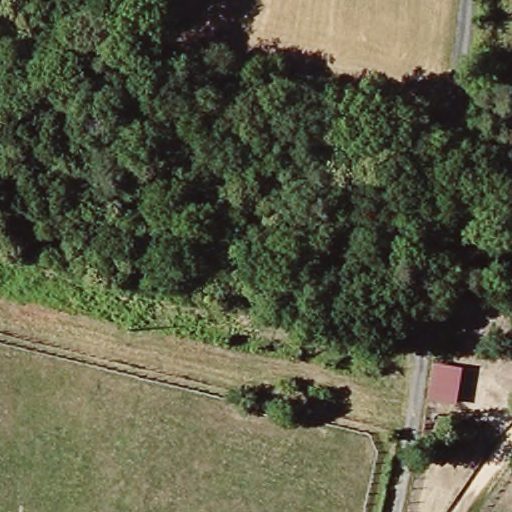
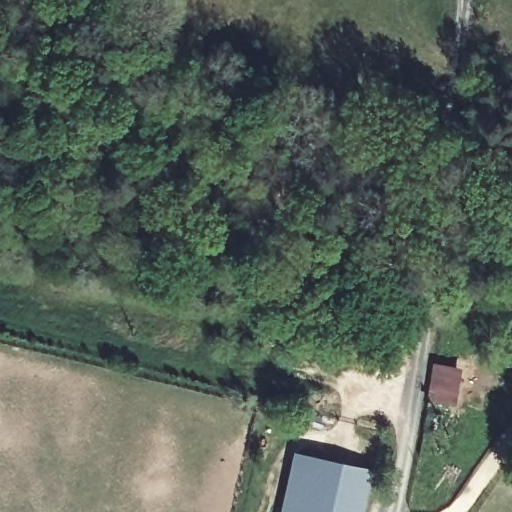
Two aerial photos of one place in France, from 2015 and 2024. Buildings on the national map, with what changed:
unchanged [(463,365),(457,392),(432,391),(439,360),(463,365)]
new [(375,469),(365,512),(281,512),(295,452),(375,469)]

